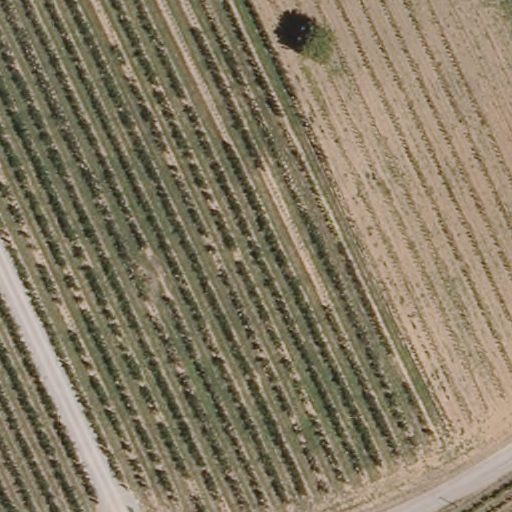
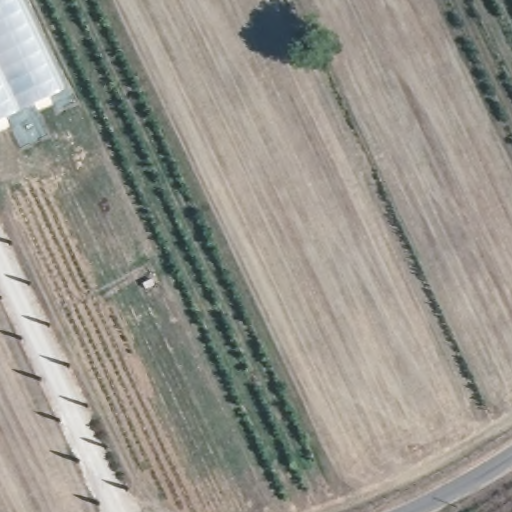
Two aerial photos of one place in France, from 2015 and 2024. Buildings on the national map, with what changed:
new [(65,89),(0,120),(0,0),(22,0),(65,89)]

